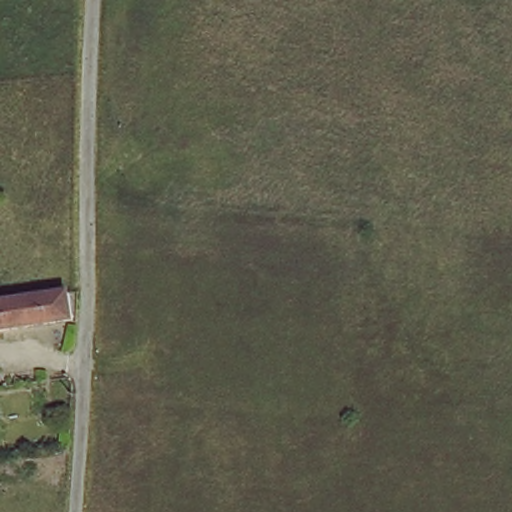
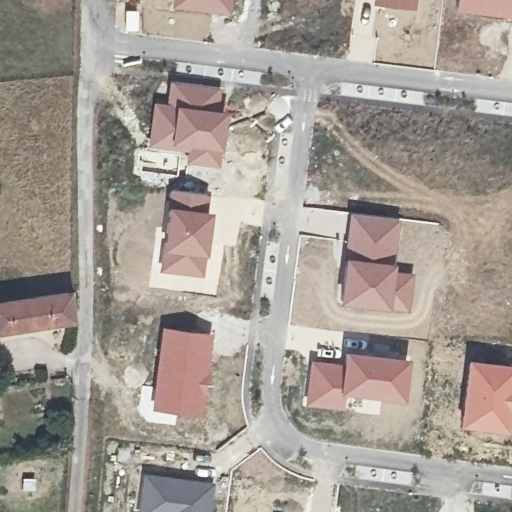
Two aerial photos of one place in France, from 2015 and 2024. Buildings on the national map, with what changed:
new [(172,0),(234,0),(232,15),(172,8),(172,0)]
new [(372,0),(417,0),(416,10),(372,5),(372,0)]
new [(456,0),(512,0),(512,19),(455,12),(456,0)]
new [(152,101),(165,102),(168,81),(223,87),(218,167),(185,164),(187,152),(148,147),(152,101)]
new [(168,190),(210,194),(203,277),(158,272),(168,190)]
new [(348,211),(398,217),(393,269),(415,273),(411,312),(337,302),(348,211)]
unchanged [(0,304),(72,296),(76,324),(0,333),(0,304)]
new [(160,326),(210,331),(205,381),(204,418),(148,410),(160,326)]
new [(341,362),(342,351),(408,357),(403,401),(347,395),(338,394),(341,362)]
new [(465,357),(512,363),(512,384),(507,431),(458,426),(465,357)]
new [(310,359),(341,362),(338,394),(347,395),(345,411),(305,406),(310,359)]
new [(217,483),(213,512),(137,512),(142,472),(217,483)]

